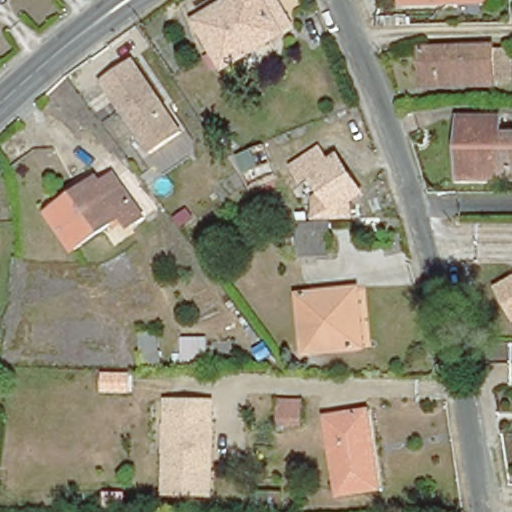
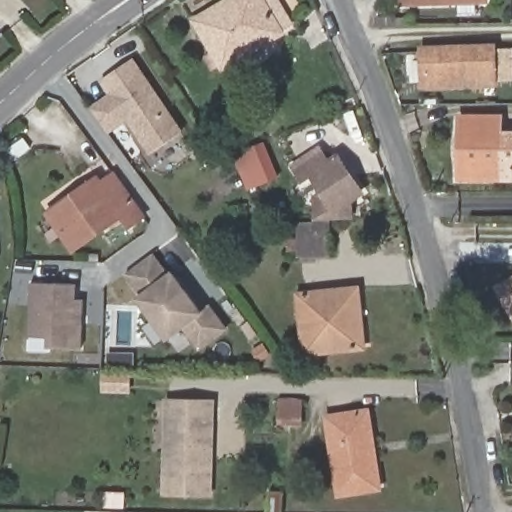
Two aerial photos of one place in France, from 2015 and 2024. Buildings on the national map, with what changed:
unchanged [(194,19),(226,0),(278,0),(293,24),(281,31),(283,33),(224,68),(194,19)]
unchanged [(401,2),(401,0),(486,0),(486,3),(401,2)]
unchanged [(495,51),(510,50),(512,77),(495,77),(496,83),(424,85),(422,48),(495,46),(495,51)]
unchanged [(149,155),(102,82),(136,57),(185,133),(149,155)]
unchanged [(500,116),(500,132),(512,133),(512,176),(460,176),(460,116),(500,116)]
new [(250,184),(247,185),(235,155),(262,144),(268,161),(274,175),(250,184)]
new [(353,217),(313,218),(312,195),(318,190),(311,180),(302,186),(290,167),(320,145),(327,154),(319,160),(326,169),(317,176),(339,208),(351,200),(353,217)]
unchanged [(317,176),(326,169),(319,160),(336,148),(343,157),(365,190),(339,208),(317,176)]
unchanged [(147,215),(134,225),(127,215),(78,249),(57,220),(52,212),(101,176),(106,184),(119,175),(147,215)]
unchanged [(328,223),(330,253),(298,254),(297,223),(328,223)]
new [(199,351),(181,329),(166,340),(135,298),(139,295),(122,274),(152,252),(170,272),(171,270),(200,307),(208,302),(228,330),(199,351)]
unchanged [(497,285),(512,277),(512,311),(497,285)]
new [(46,348),(46,339),(28,338),(30,282),(76,284),(75,299),(84,300),(82,350),(46,348)]
unchanged [(356,287),(362,348),(304,354),(297,294),(356,287)]
demolished [(159,333),(160,365),(139,366),(138,353),(141,352),(140,334),(159,333)]
demolished [(207,338),(208,366),(183,365),(182,337),(207,338)]
unchanged [(299,401),(300,425),(278,425),(277,401),(299,401)]
unchanged [(367,409),(379,488),(338,494),(326,416),(367,409)]
unchanged [(211,488),(167,486),(170,411),(214,413),(212,442),(212,458),(211,488)]

